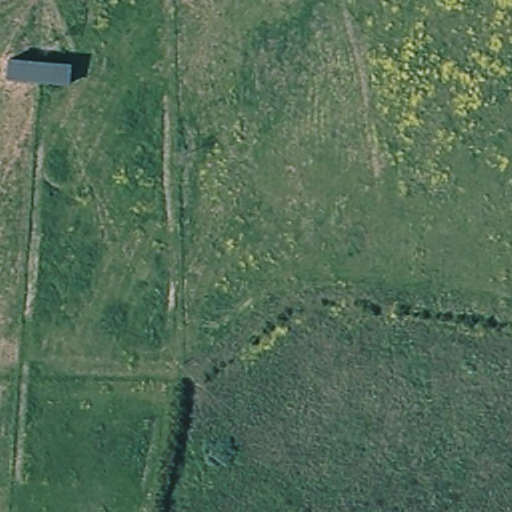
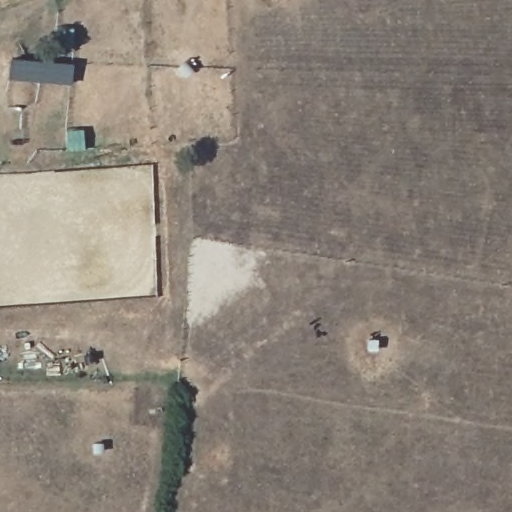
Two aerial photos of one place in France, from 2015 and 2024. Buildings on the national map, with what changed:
unchanged [(71,85),(5,79),(9,56),(73,61),(71,85)]

